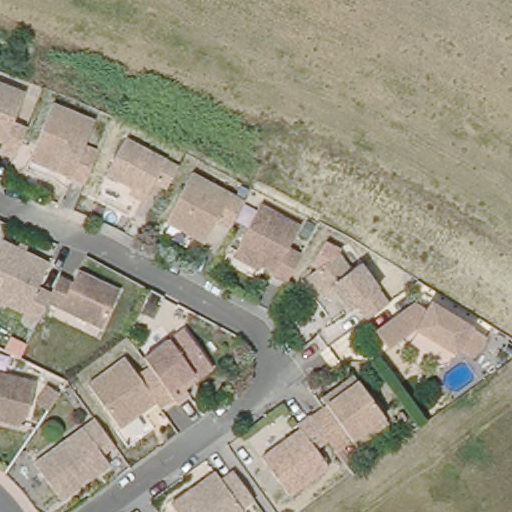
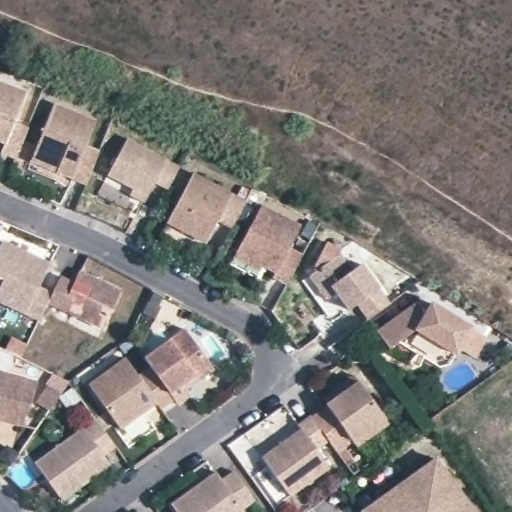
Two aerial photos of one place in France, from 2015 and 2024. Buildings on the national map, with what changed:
unchanged [(13,117),(27,123),(24,130),(15,153),(0,146),(4,138),(0,137),(0,78),(25,89),(13,117)]
unchanged [(32,155),(53,104),(95,121),(85,145),(99,151),(86,183),(56,171),(30,160),(32,155)]
unchanged [(128,195),(132,189),(107,175),(127,138),(179,166),(167,189),(154,182),(146,196),(142,202),(128,195)]
unchanged [(185,232),(166,222),(193,173),(245,201),(245,202),(244,204),(253,209),(246,222),(237,217),(231,227),(217,220),(208,237),(205,243),(185,232)]
unchanged [(233,257),(236,251),(261,205),(300,226),(288,248),(301,255),(286,283),(272,275),(275,272),(262,265),(259,270),(233,257)]
unchanged [(0,284),(3,279),(0,277),(0,244),(2,241),(49,263),(38,287),(51,294),(47,302),(38,320),(0,301),(0,284)]
unchanged [(378,288),(389,303),(374,314),(367,319),(356,303),(348,309),(331,286),(321,293),(308,275),(339,253),(351,270),(360,263),(378,288)]
unchanged [(93,324),(47,302),(51,294),(60,276),(73,283),(79,271),(86,274),(120,291),(106,319),(102,328),(93,324)]
unchanged [(490,331),(478,352),(463,343),(460,348),(420,323),(393,343),(380,326),(420,297),(432,304),(435,298),(490,331)]
unchanged [(185,384),(190,389),(177,399),(173,393),(155,369),(150,363),(143,353),(184,323),(209,359),(213,364),(185,384)]
unchanged [(120,423),(89,379),(125,353),(138,371),(150,363),(155,369),(173,393),(160,402),(156,397),(139,410),(120,423)]
unchanged [(28,412),(18,425),(0,420),(0,372),(36,381),(28,412)]
unchanged [(347,452),(352,460),(345,464),(328,440),(312,417),(327,406),(326,404),(322,398),(354,375),(358,381),(384,417),(388,423),(347,452)]
unchanged [(35,402),(47,385),(59,393),(60,393),(48,410),(35,402)]
unchanged [(300,429),(297,425),(310,415),(311,416),(312,417),(328,440),(316,449),(329,466),(289,495),(261,457),(300,429)]
unchanged [(110,465),(61,500),(34,462),(95,419),(109,439),(115,446),(103,455),(110,465)]
new [(359,512),(359,511),(435,457),(475,512),(359,512)]
unchanged [(233,466),(247,484),(254,494),(242,503),(241,512),(179,512),(170,499),(215,467),(221,475),(233,466)]

